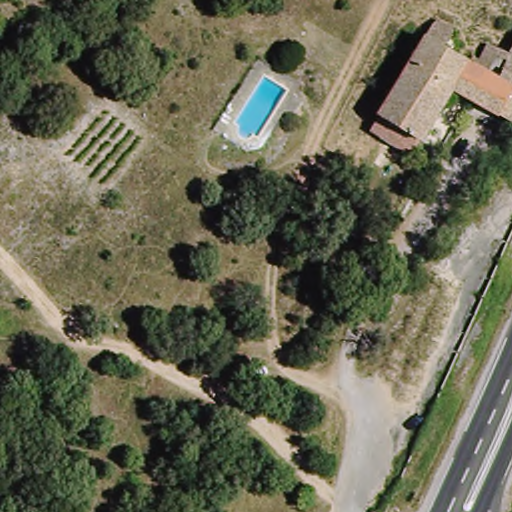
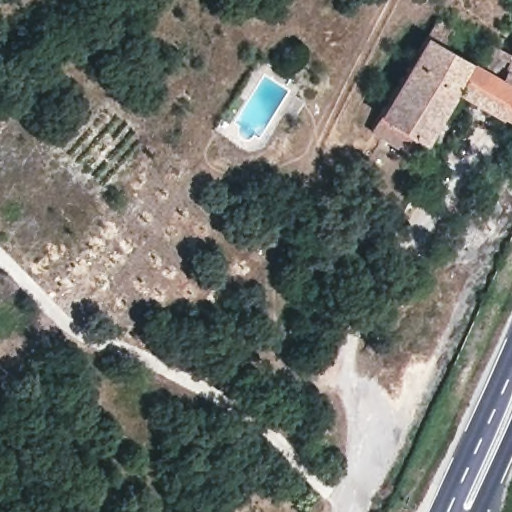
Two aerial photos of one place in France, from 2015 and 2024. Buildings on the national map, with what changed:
unchanged [(459,89),(427,139),(406,132),(395,141),(370,119),(435,22),(449,32),(445,42),(498,73),(512,53),(512,112),(459,89)]

